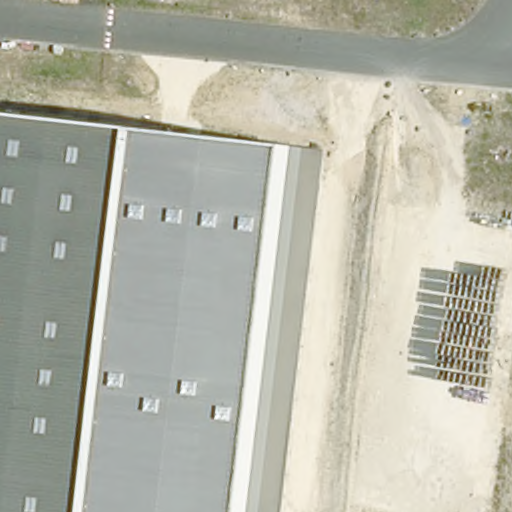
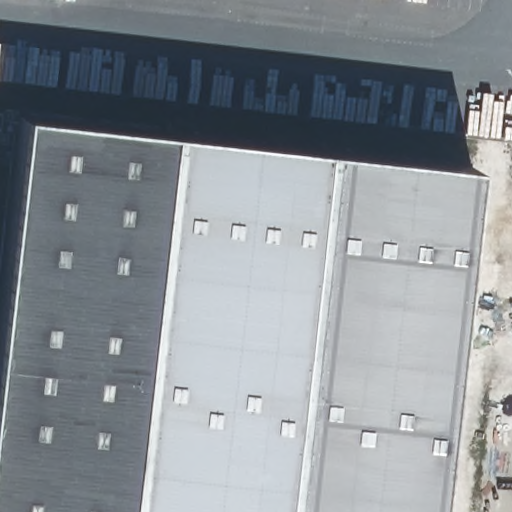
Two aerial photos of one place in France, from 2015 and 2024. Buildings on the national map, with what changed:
unchanged [(163,132),(120,512),(0,512),(0,278),(19,116),(163,132)]
unchanged [(320,151),(276,512),(120,512),(163,132),(320,151)]
new [(473,167),(433,512),(276,512),(320,151),(473,167)]

